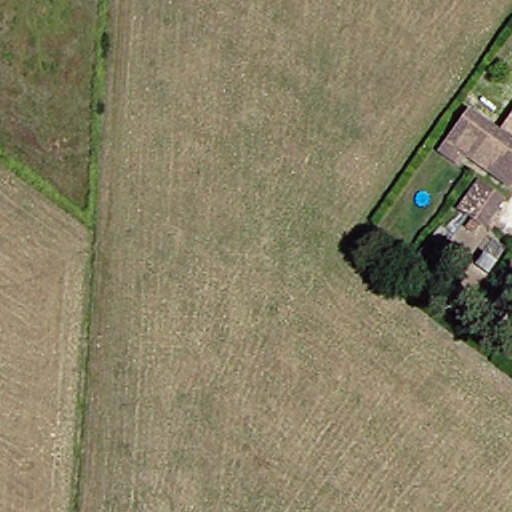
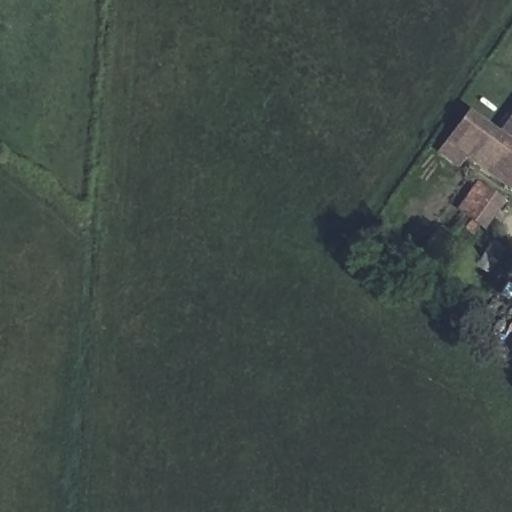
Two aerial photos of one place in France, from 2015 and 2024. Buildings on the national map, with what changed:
unchanged [(447,136),(469,106),(512,137),(512,177),(509,182),(447,136)]
unchanged [(499,193),(480,220),(468,211),(488,185),(499,193)]

